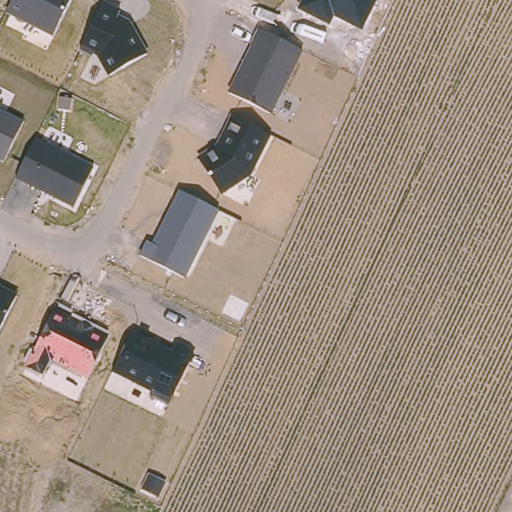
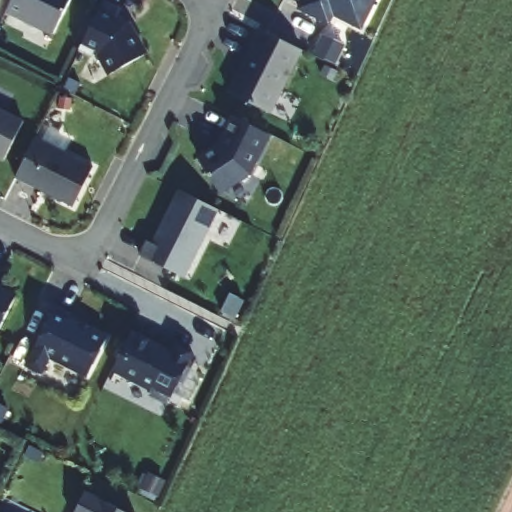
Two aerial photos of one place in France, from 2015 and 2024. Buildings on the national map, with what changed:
unchanged [(5,14),(13,0),(71,0),(53,38),(5,14)]
unchanged [(298,9),(302,0),(377,0),(363,31),(334,18),(329,26),(298,9)]
unchanged [(118,14),(131,21),(147,54),(108,75),(97,54),(93,53),(91,56),(79,50),(103,1),(119,9),(118,14)]
unchanged [(303,51),(272,114),(228,93),(258,30),(303,51)]
unchanged [(0,161),(0,109),(23,120),(3,162),(0,161)]
unchanged [(231,117),(271,135),(249,175),(222,194),(198,157),(216,145),(231,117)]
unchanged [(94,166),(74,208),(14,178),(36,137),(94,166)]
unchanged [(153,244),(178,190),(219,210),(185,278),(139,255),(146,241),(153,244)]
unchanged [(0,328),(0,285),(17,294),(0,328)]
unchanged [(72,314),(71,316),(109,335),(88,379),(49,361),(42,374),(25,365),(57,307),(72,314)]
unchanged [(193,353),(169,406),(149,396),(151,393),(113,373),(132,332),(173,350),(176,344),(193,353)]
new [(80,493),(119,512),(71,512),(80,493)]

